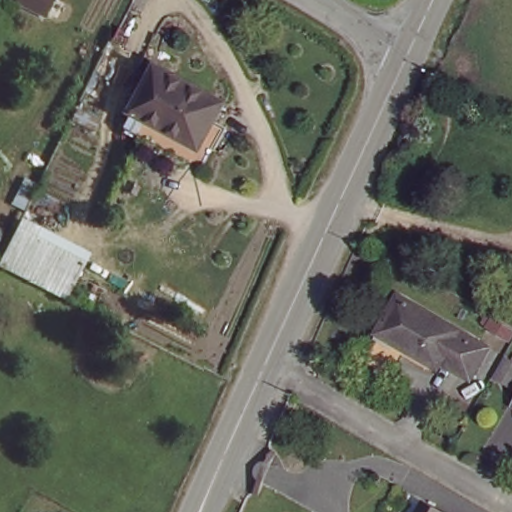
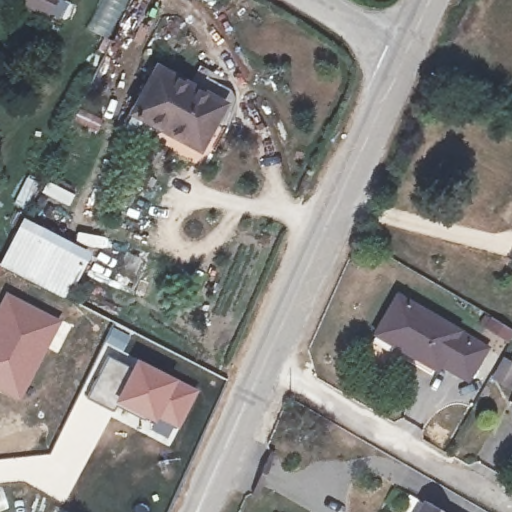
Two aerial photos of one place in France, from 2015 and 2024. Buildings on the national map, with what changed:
unchanged [(222,89),(211,110),(227,120),(208,156),(128,113),(160,55),(222,89)]
unchanged [(44,288),(0,267),(0,261),(19,224),(64,247),(44,288)]
new [(0,391),(0,301),(6,291),(61,321),(18,401),(0,391)]
unchanged [(477,343),(459,378),(383,340),(402,305),(477,343)]
new [(130,369),(135,358),(177,380),(198,391),(179,430),(156,417),(154,422),(142,416),(144,420),(115,406),(112,410),(87,398),(107,357),(130,369)]
unchanged [(512,371),(512,384),(508,393),(493,385),(503,367),(512,371)]
unchanged [(410,512),(422,492),(460,512),(410,512)]

